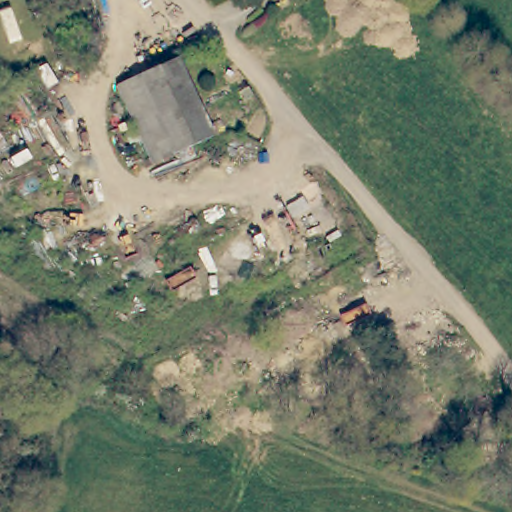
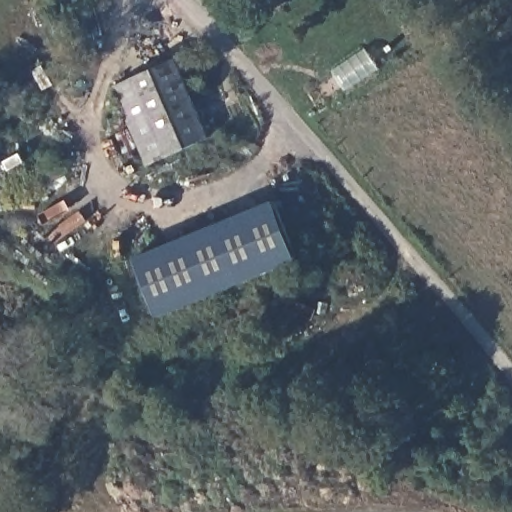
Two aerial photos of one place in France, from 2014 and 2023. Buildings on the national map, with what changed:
unchanged [(215,137),(156,167),(116,89),(174,60),(215,137)]
new [(302,259),(163,317),(137,257),(275,200),(302,259)]

